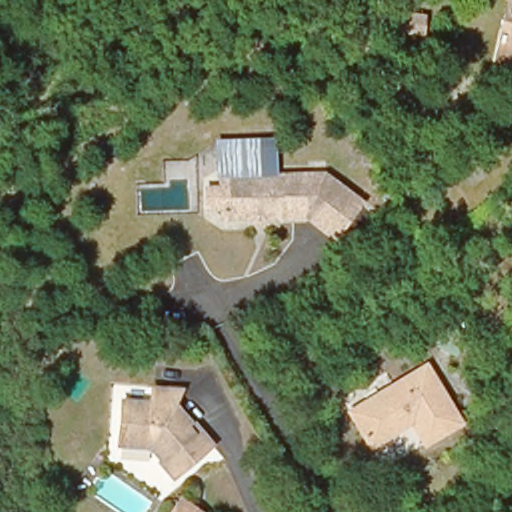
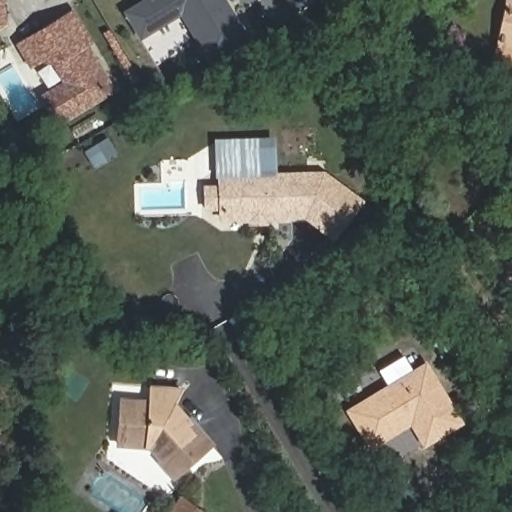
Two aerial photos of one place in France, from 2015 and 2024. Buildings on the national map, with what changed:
new [(8,25),(0,26),(0,0),(4,0),(8,25)]
new [(229,0),(246,26),(205,50),(185,17),(142,41),(127,12),(147,0),(229,0)]
new [(288,0),(318,0),(296,14),(288,0)]
demolished [(512,0),(512,35),(497,32),(503,0),(512,0)]
new [(501,47),(505,22),(507,0),(512,0),(512,49),(501,47)]
new [(90,45),(116,91),(55,129),(38,95),(63,82),(54,65),(41,64),(30,70),(14,44),(74,8),(94,42),(90,45)]
unchanged [(421,42),(385,40),(388,11),(425,14),(421,42)]
unchanged [(275,136),(278,181),(224,180),(215,140),(275,136)]
unchanged [(224,180),(278,181),(307,181),(306,222),(222,222),(224,180)]
unchanged [(337,183),(365,197),(332,230),(322,225),(306,222),(307,181),(337,183)]
unchanged [(430,362),(463,419),(425,439),(411,414),(370,436),(352,403),(430,362)]
unchanged [(114,443),(116,395),(150,395),(151,377),(180,378),(181,408),(217,443),(180,477),(148,442),(114,443)]
unchanged [(176,495),(202,512),(165,512),(176,495)]

